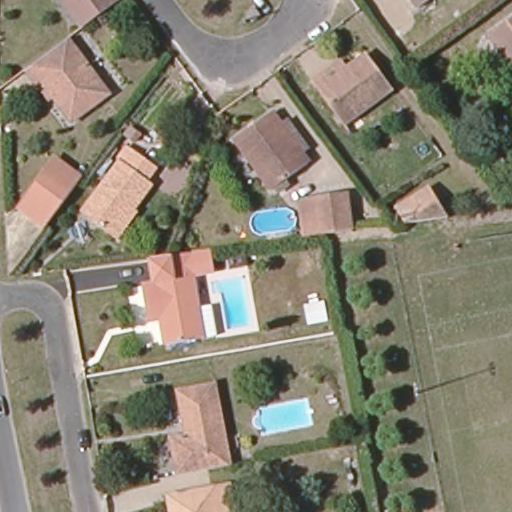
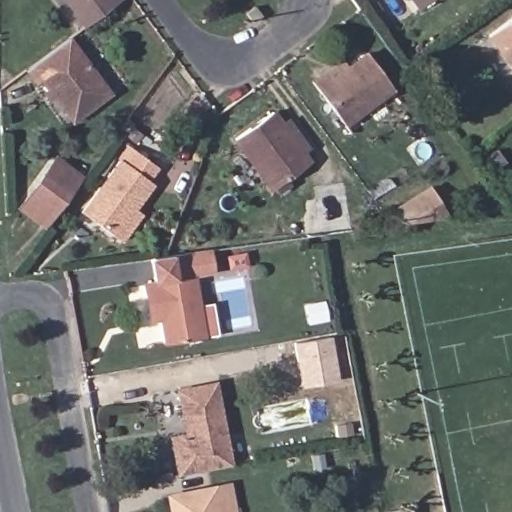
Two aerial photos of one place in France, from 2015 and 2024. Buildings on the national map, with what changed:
unchanged [(63,0),(112,0),(82,25),(63,0)]
unchanged [(416,0),(431,0),(422,7),(416,0)]
unchanged [(512,32),(512,67),(493,45),(512,32)]
unchanged [(109,95),(74,124),(39,80),(45,72),(36,65),(69,40),(109,95)]
unchanged [(397,90),(350,125),(313,81),(324,72),(341,60),(349,69),(367,55),(397,90)]
unchanged [(272,190),(231,140),(266,111),(275,118),(302,150),(307,158),(272,190)]
unchanged [(117,235),(108,229),(81,208),(117,156),(128,162),(138,152),(157,166),(151,177),(156,181),(135,208),(138,209),(117,235)]
unchanged [(49,219),(22,200),(46,166),(74,187),(49,219)]
unchanged [(403,220),(392,209),(424,185),(434,197),(403,220)]
unchanged [(297,201),(311,199),(357,195),(360,229),(329,234),(316,233),(301,236),(297,201)]
unchanged [(208,252),(211,272),(192,276),(203,341),(164,347),(160,314),(148,316),(142,281),(151,279),(147,259),(171,255),(208,252)]
new [(292,343),(330,336),(337,380),(300,387),(292,343)]
unchanged [(172,474),(166,438),(181,435),(175,391),(213,385),(226,466),(172,474)]
unchanged [(165,497),(226,488),(228,512),(168,512),(165,497)]
unchanged [(383,506),(410,501),(412,512),(385,512),(383,506)]

